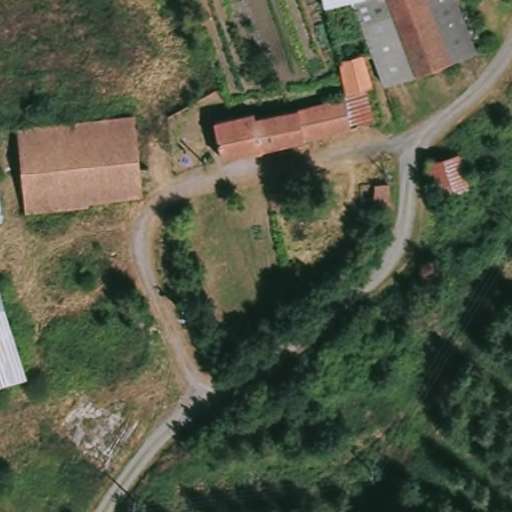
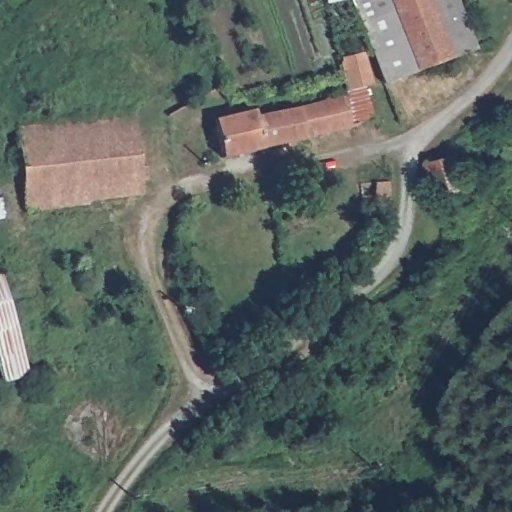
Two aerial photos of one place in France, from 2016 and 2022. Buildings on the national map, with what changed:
unchanged [(325,14),(320,0),(362,0),(362,1),(351,5),(350,5),(325,14)]
unchanged [(351,5),(362,1),(366,0),(469,0),(470,5),(454,10),(465,44),(466,48),(471,63),(449,72),(448,72),(438,75),(422,80),(389,90),(380,93),(369,62),(366,54),(350,5),(351,5)]
unchanged [(252,126),(342,101),(336,83),(333,72),(356,66),(361,65),(371,96),(363,98),(371,125),(352,130),(222,163),(212,131),(239,122),(248,120),(252,126)]
unchanged [(131,117),(138,199),(86,202),(86,206),(25,213),(19,129),(131,117)]
unchanged [(472,127),(483,165),(452,175),(441,139),(472,127)]
unchanged [(392,156),(397,182),(386,184),(381,159),(392,156)]
unchanged [(2,219),(0,220),(0,214),(2,219)]
unchanged [(33,373),(0,385),(0,279),(4,277),(6,282),(33,373)]

